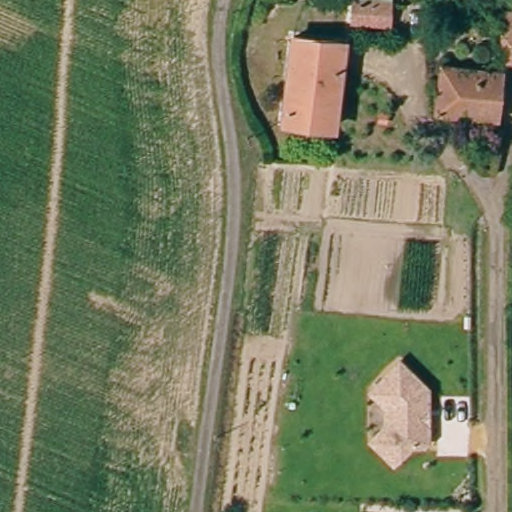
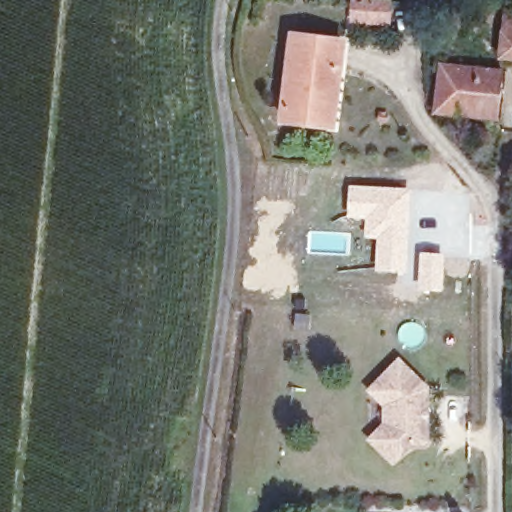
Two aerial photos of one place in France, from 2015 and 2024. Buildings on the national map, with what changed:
unchanged [(353,0),(391,0),(388,20),(351,16),(353,0)]
unchanged [(512,10),(512,59),(506,58),(512,10)]
unchanged [(345,41),(335,125),(286,120),(296,35),(345,41)]
unchanged [(443,65),(500,71),(496,117),(438,111),(443,65)]
new [(348,184),(411,187),(405,272),(374,271),(376,239),(364,238),(365,219),(347,218),(348,184)]
new [(420,250),(445,253),(442,290),(417,288),(420,250)]
unchanged [(427,437),(424,441),(410,441),(393,458),(370,436),(383,423),(386,420),(386,402),(383,399),(370,387),(399,357),(423,380),(427,385),(427,392),(427,406),(427,417),(427,437)]

